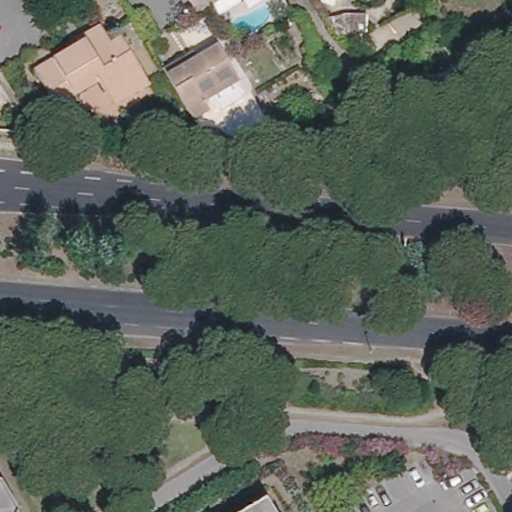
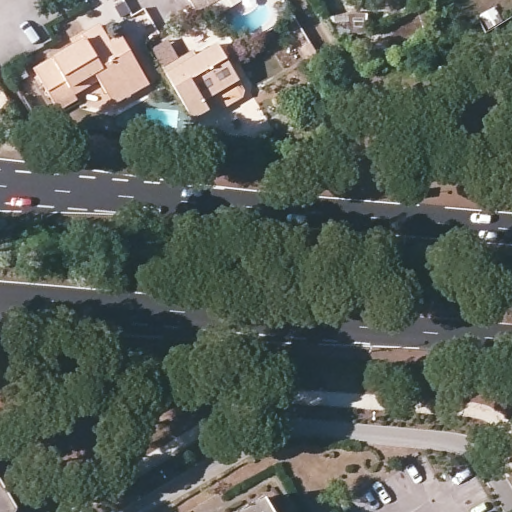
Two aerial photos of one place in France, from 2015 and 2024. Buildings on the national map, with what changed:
unchanged [(190,6),(186,0),(202,0),(190,6)]
unchanged [(328,16),(349,11),(349,29),(339,35),(328,16)]
unchanged [(51,95),(32,60),(74,36),(72,31),(79,27),(98,16),(107,34),(119,27),(146,74),(131,82),(110,95),(104,85),(96,71),(71,85),(74,89),(55,101),(51,95)]
unchanged [(235,75),(201,96),(205,104),(188,114),(159,64),(177,54),(189,47),(193,52),(214,40),(235,75)]
unchanged [(0,84),(0,78),(3,82),(0,84)]
unchanged [(15,503),(13,512),(0,512),(0,475),(2,477),(15,503)]
unchanged [(271,512),(221,512),(258,490),(271,512)]

